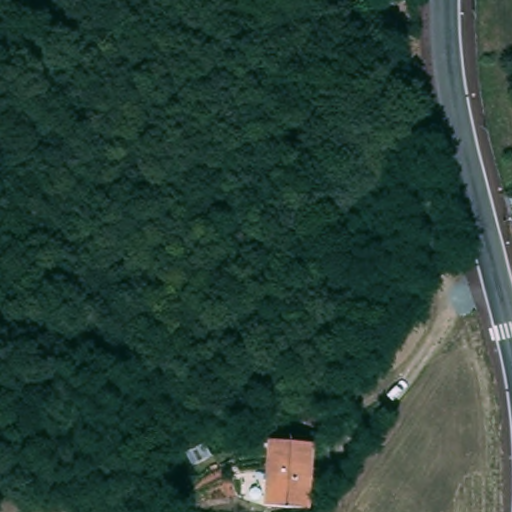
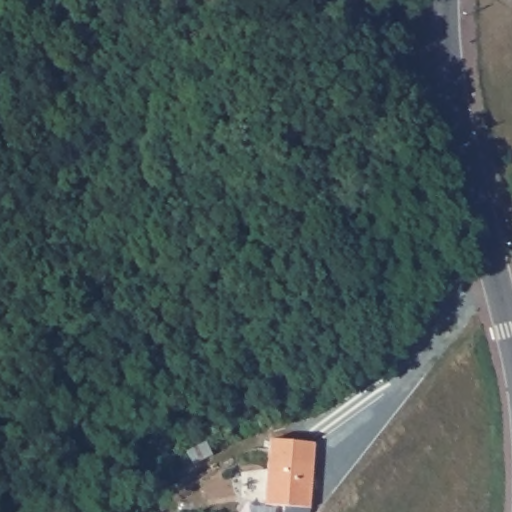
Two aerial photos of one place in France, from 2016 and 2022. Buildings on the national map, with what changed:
unchanged [(315,440),(313,504),(267,502),(270,437),(315,440)]

